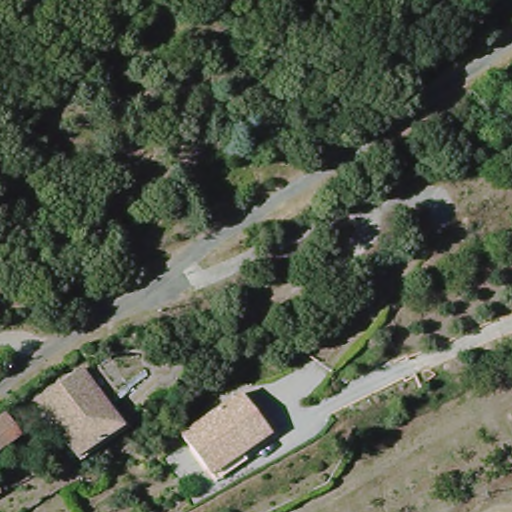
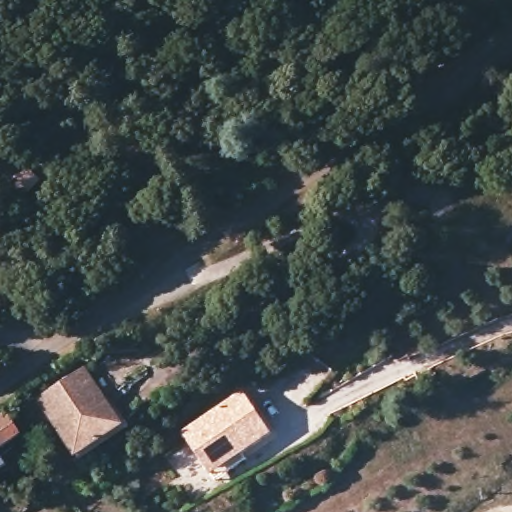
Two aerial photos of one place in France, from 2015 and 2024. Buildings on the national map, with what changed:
unchanged [(114,438),(71,461),(40,398),(91,371),(121,434),(114,438)]
unchanged [(208,475),(183,429),(246,396),(272,439),(208,475)]
unchanged [(5,421),(18,412),(35,435),(19,445),(0,457),(0,424),(5,421)]
unchanged [(0,508),(0,487),(2,486),(10,502),(0,508)]

